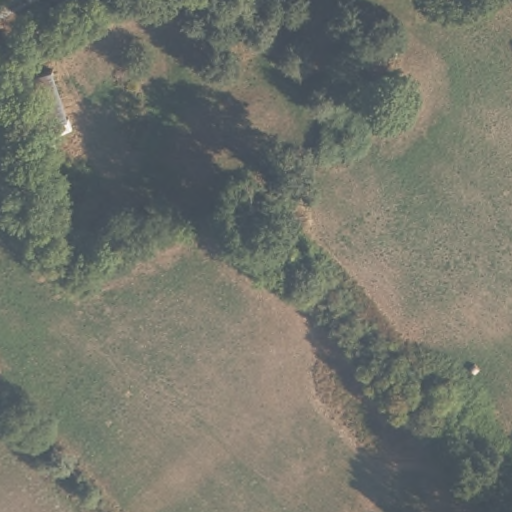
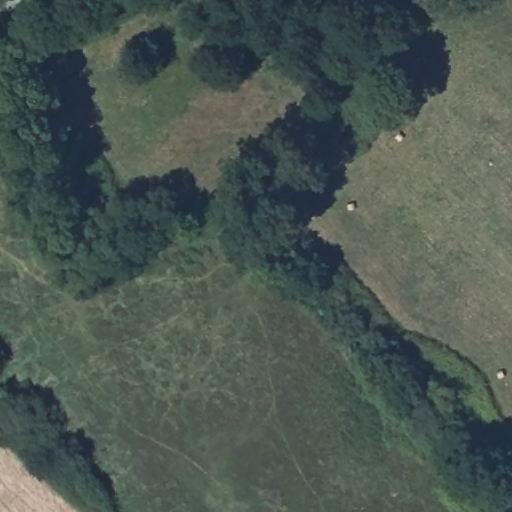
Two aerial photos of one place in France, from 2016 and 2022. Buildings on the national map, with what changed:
unchanged [(64,117),(40,124),(25,76),(50,69),(64,117)]

